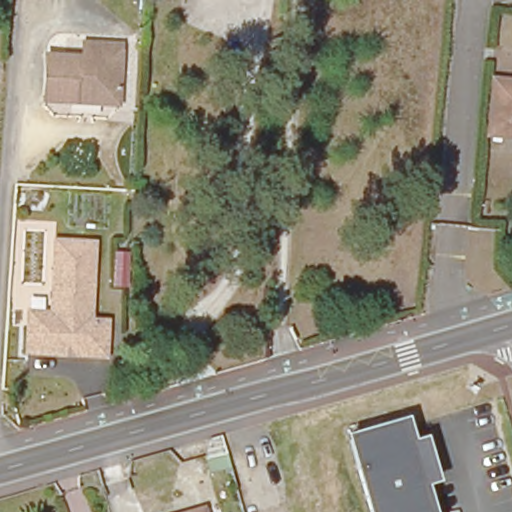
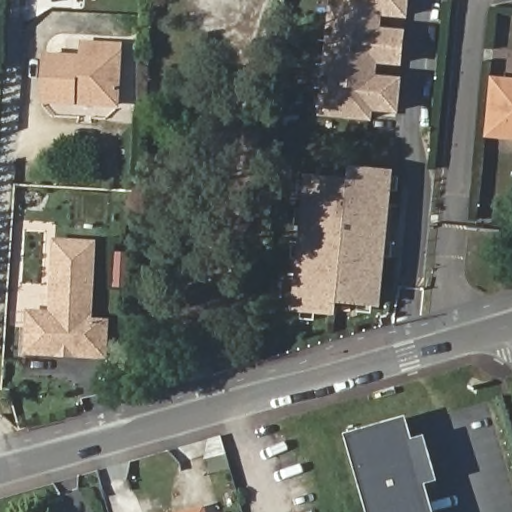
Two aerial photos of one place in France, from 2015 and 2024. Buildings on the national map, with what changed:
new [(380,12),(378,30),(404,32),(401,62),(376,60),(374,69),(374,77),(399,80),(396,110),(371,107),(370,117),(323,114),(333,0),(407,0),(405,15),(380,12)]
unchanged [(36,100),(40,54),(75,54),(79,40),(121,42),(118,102),(36,100)]
unchanged [(497,83),(512,84),(512,135),(493,134),(497,83)]
new [(378,304),(334,300),(333,312),(295,309),(308,177),(352,181),(353,169),(391,172),(378,304)]
unchanged [(69,240),(68,250),(89,251),(85,318),(101,318),(100,353),(22,350),(24,325),(37,325),(46,316),(50,239),(69,240)]
unchanged [(430,512),(368,512),(347,436),(404,420),(430,512)]
unchanged [(208,470),(205,456),(209,435),(210,435),(219,433),(221,435),(229,461),(230,465),(208,470)]
unchanged [(210,507),(212,512),(196,512),(210,507)]

